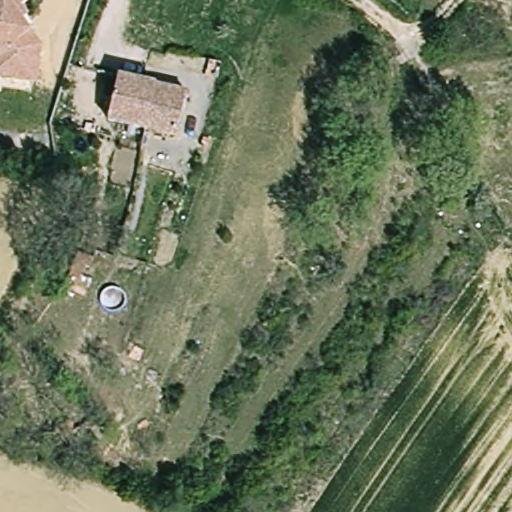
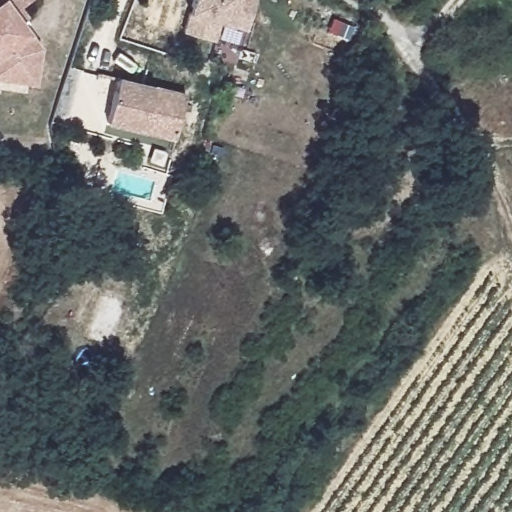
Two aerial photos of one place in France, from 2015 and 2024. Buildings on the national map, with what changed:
unchanged [(25,8),(31,17),(26,21),(46,46),(43,83),(10,78),(10,57),(0,45),(0,0),(35,0),(25,8)]
new [(193,0),(254,0),(246,29),(232,25),(220,22),(214,42),(181,34),(189,14),(193,0)]
unchanged [(0,78),(0,70),(2,62),(0,60),(0,45),(10,57),(10,78),(0,78)]
unchanged [(123,76),(192,96),(179,139),(111,119),(123,76)]

